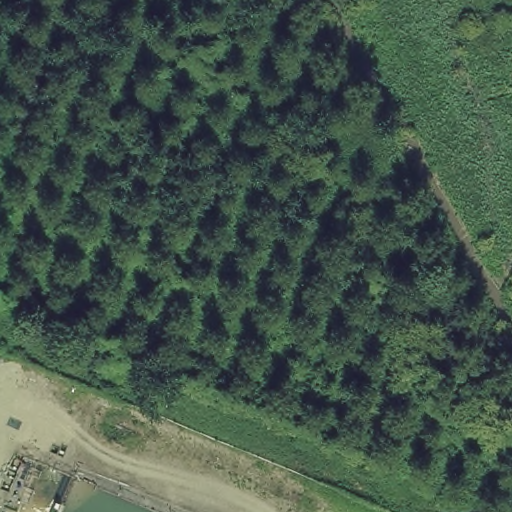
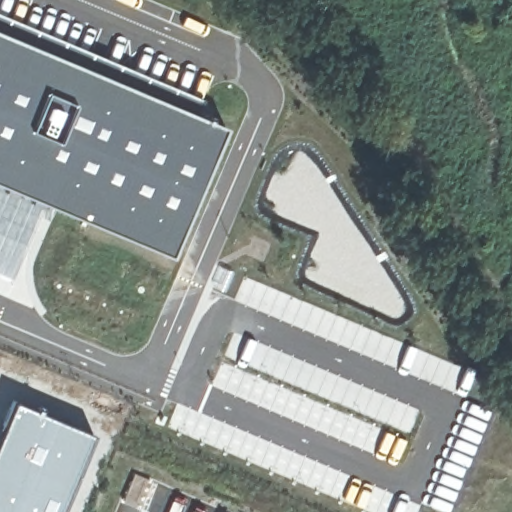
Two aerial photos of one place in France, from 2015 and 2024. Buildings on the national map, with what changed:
new [(179,255),(0,180),(0,29),(238,130),(179,255)]
new [(13,405),(15,401),(90,433),(58,512),(0,512),(0,428),(10,404),(13,405)]

